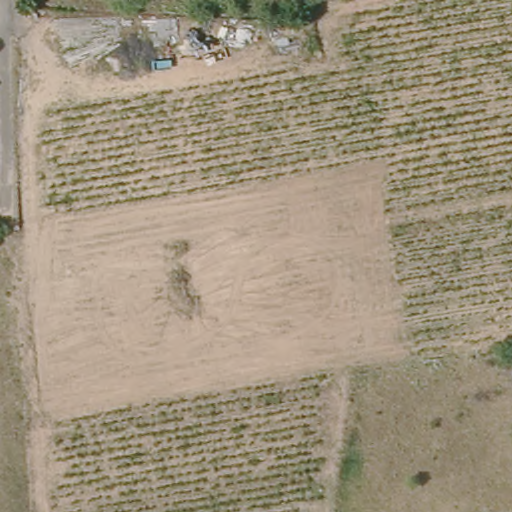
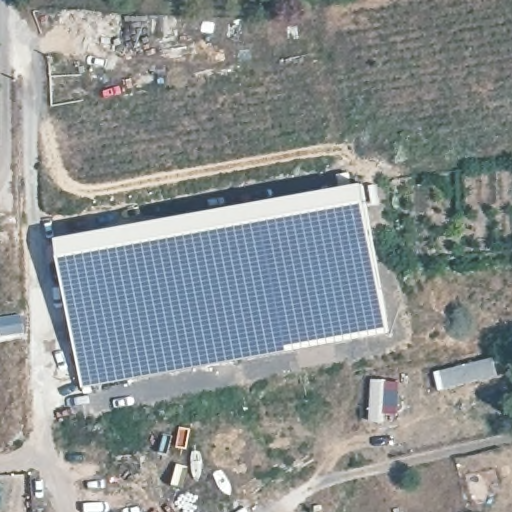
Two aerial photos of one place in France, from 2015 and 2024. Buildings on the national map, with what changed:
new [(57,238),(363,184),(388,334),(85,386),(57,238)]
new [(398,415),(389,415),(389,423),(369,421),(373,377),(400,379),(398,415)]

